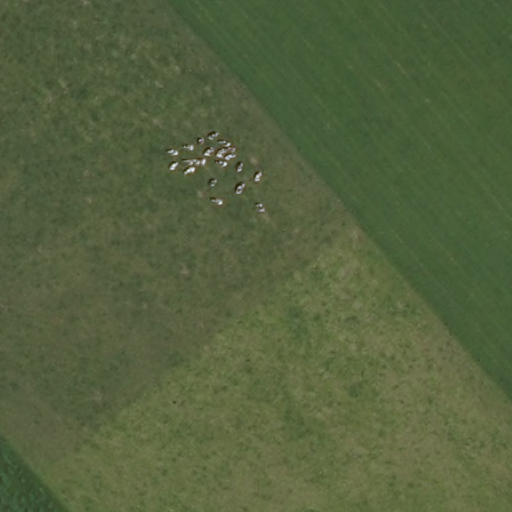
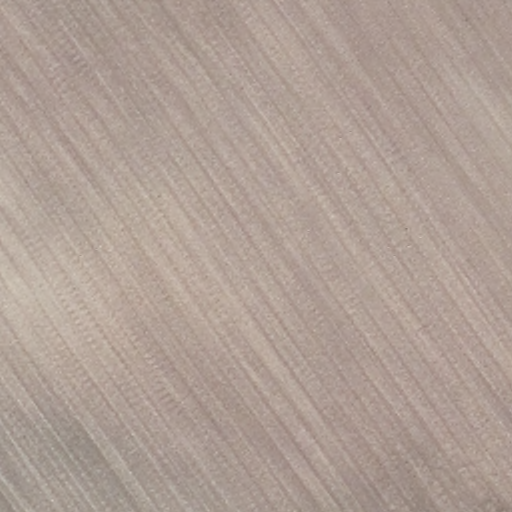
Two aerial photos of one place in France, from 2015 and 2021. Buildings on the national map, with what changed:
[]

